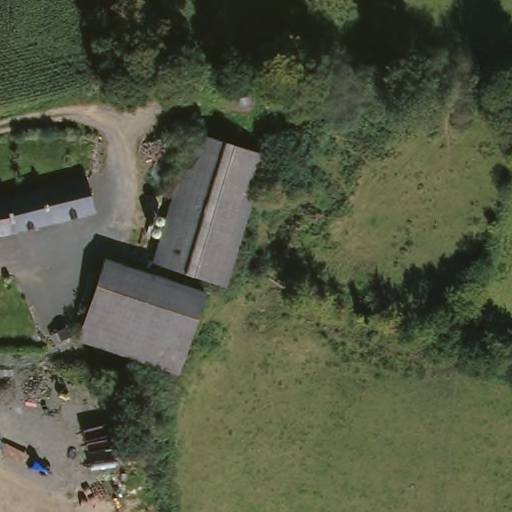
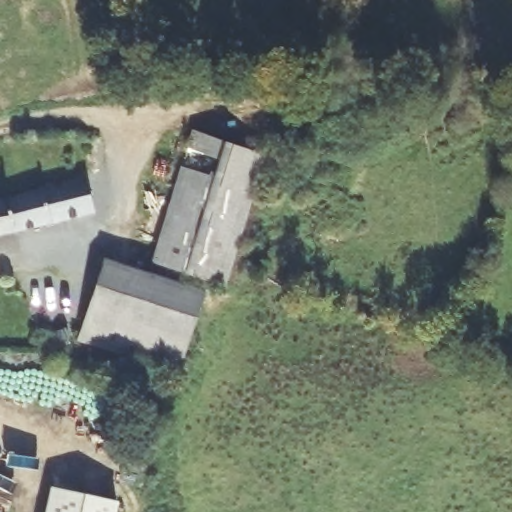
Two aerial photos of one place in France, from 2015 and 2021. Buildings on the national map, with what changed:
unchanged [(228,281),(222,279),(160,258),(202,126),(274,149),(237,255),(228,281)]
unchanged [(47,189),(65,173),(91,167),(101,214),(0,234),(0,198),(47,189)]
unchanged [(111,256),(200,288),(171,369),(82,337),(111,256)]
new [(116,512),(45,512),(50,489),(119,501),(116,512)]

